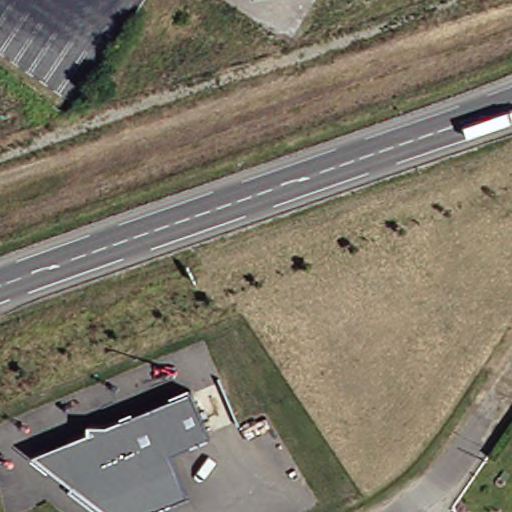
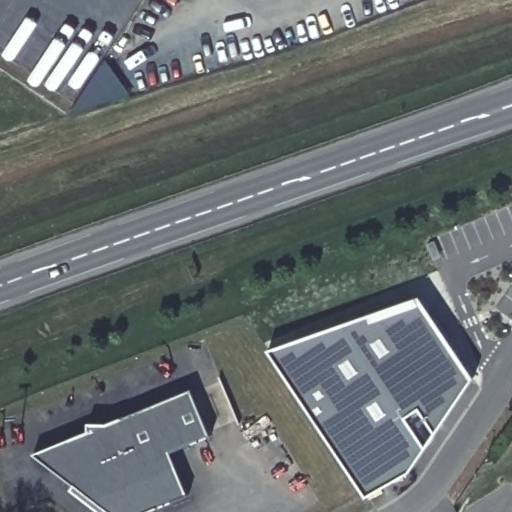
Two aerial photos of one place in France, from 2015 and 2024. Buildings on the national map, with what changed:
new [(421,298),(475,379),(402,483),(369,499),(271,350),(421,298)]
unchanged [(77,483),(36,452),(71,437),(90,429),(92,421),(110,420),(195,385),(215,432),(175,449),(193,491),(145,512),(106,512),(74,488),(77,483)]

